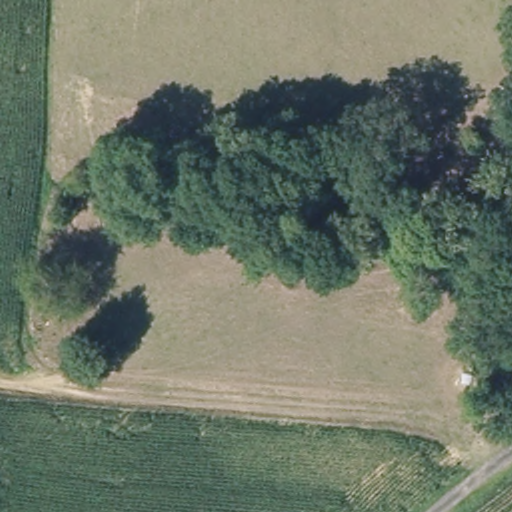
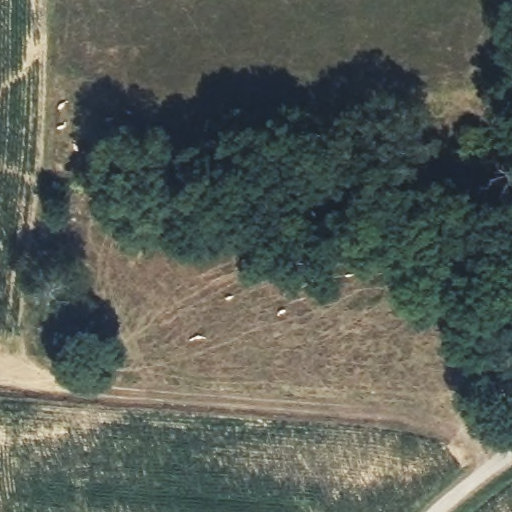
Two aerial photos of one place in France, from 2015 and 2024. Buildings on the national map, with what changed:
[]

